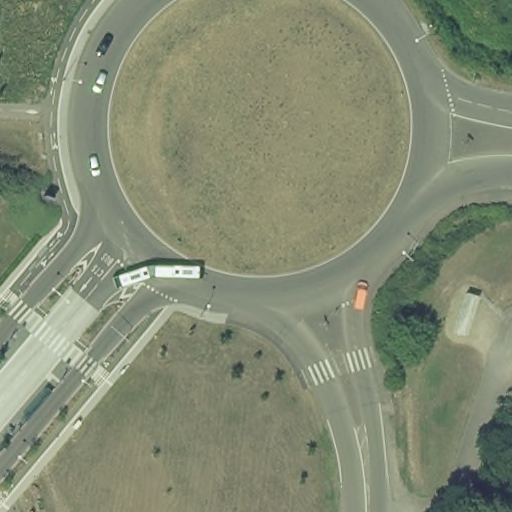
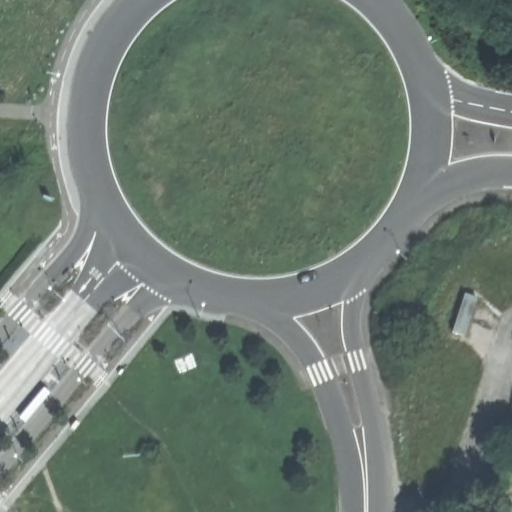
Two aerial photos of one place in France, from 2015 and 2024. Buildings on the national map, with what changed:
unchanged [(465,295),(477,298),(465,336),(453,332),(465,295)]

